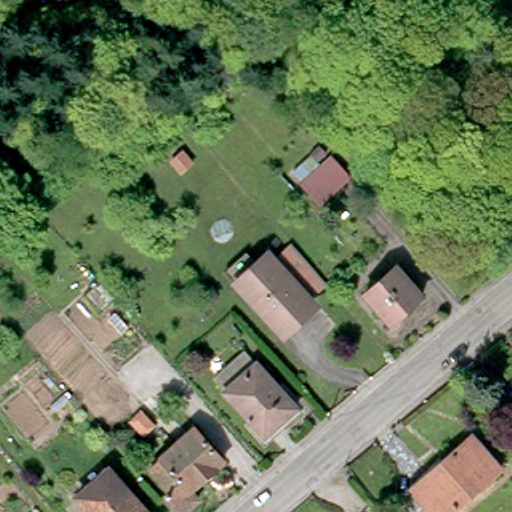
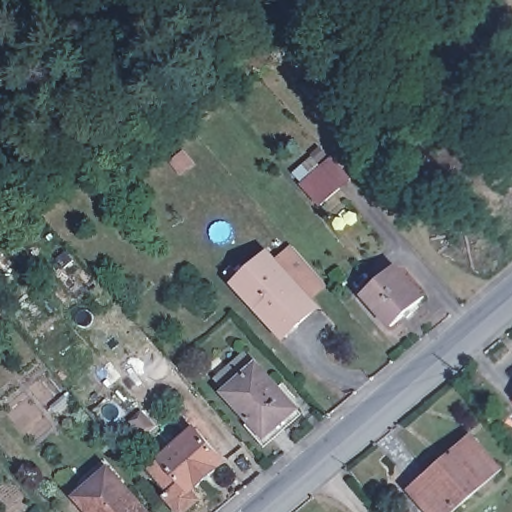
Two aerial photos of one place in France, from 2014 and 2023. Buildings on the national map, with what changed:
unchanged [(351,179),(321,205),(303,185),(334,159),(351,179)]
unchanged [(79,173),(70,181),(64,175),(73,166),(79,173)]
unchanged [(294,320),(279,333),(246,297),(230,280),(235,275),(264,250),(281,267),(284,265),(275,255),(289,242),(302,258),(321,280),(306,294),(309,297),(297,309),(301,313),(294,320)]
unchanged [(423,298),(392,326),(365,296),(397,268),(423,298)]
unchanged [(258,363),(298,409),(266,438),(226,393),(226,390),(215,380),(244,352),(257,364),(258,363)]
unchanged [(191,491),(199,500),(186,512),(179,512),(167,498),(173,493),(153,470),(163,460),(162,459),(196,428),(224,462),(191,491)]
unchanged [(438,467),(473,437),(502,471),(455,512),(435,512),(417,491),(441,471),(438,467)]
unchanged [(147,512),(91,512),(79,498),(110,470),(147,512)]

